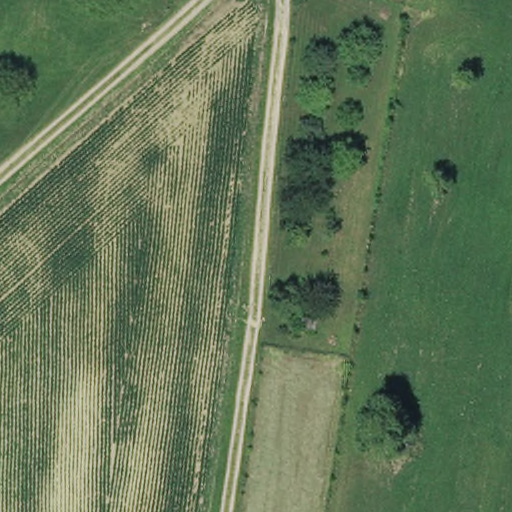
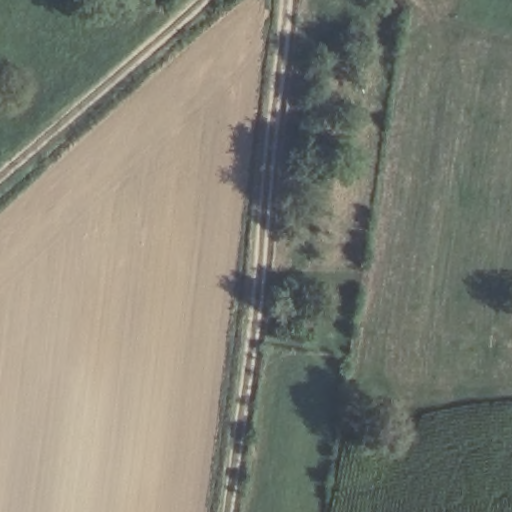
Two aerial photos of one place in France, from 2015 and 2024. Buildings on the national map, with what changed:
unchanged [(315,333),(297,329),(298,313),(315,314),(315,333)]

